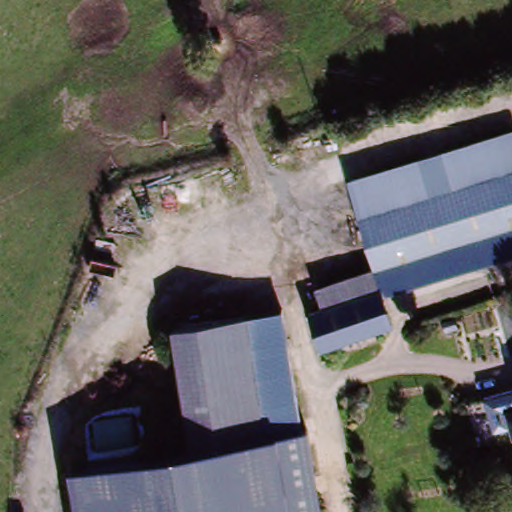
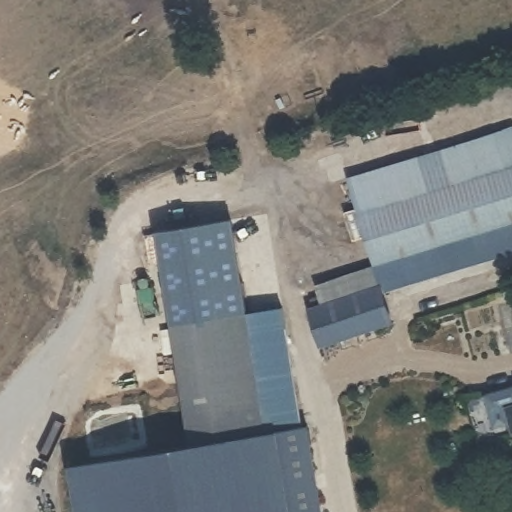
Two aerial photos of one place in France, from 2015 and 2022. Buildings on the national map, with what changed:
unchanged [(385,291),(358,187),(512,145),(512,259),(385,294),(385,291)]
new [(244,314),(170,327),(154,233),(227,221),(244,314)]
unchanged [(324,287),(375,272),(381,292),(330,307),(324,287)]
unchanged [(393,325),(320,347),(310,312),(330,307),(381,292),(385,291),(385,294),(393,325)]
unchanged [(322,512),(203,512),(176,331),(288,308),(322,512)]
new [(501,402),(512,399),(512,439),(504,411),(501,402)]
unchanged [(203,512),(77,512),(69,467),(194,448),(203,512)]

